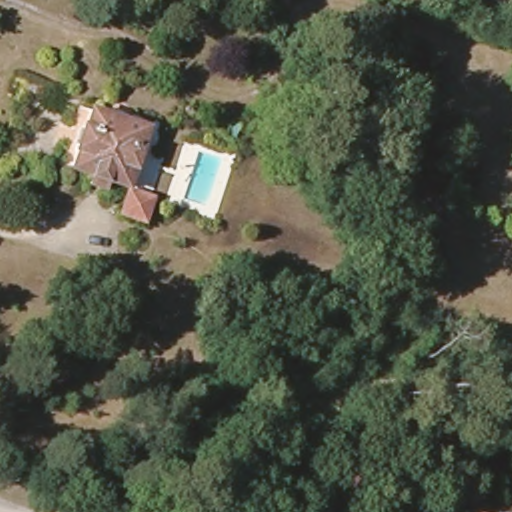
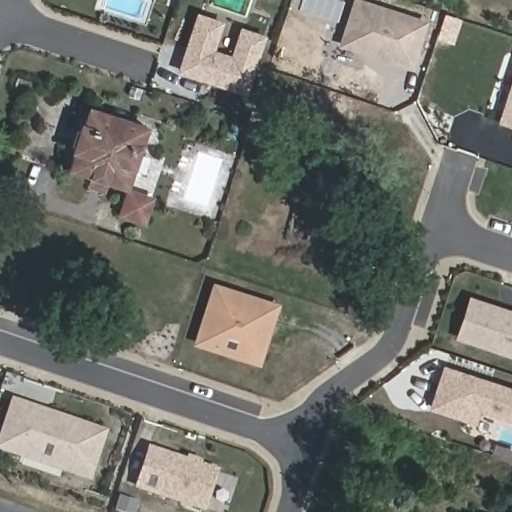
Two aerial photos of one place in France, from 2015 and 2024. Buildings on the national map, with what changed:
new [(360,0),(362,0),(429,21),(415,65),(346,43),(360,0)]
new [(263,43),(246,94),(177,71),(195,16),(222,25),(214,50),(230,54),(244,33),(252,35),(263,43)]
new [(512,84),(512,125),(499,121),(512,84)]
unchanged [(128,187),(72,168),(91,109),(147,128),(128,187)]
unchanged [(145,221),(122,214),(129,191),(152,198),(145,221)]
new [(246,357),(200,342),(219,285),(280,304),(267,344),(262,361),(246,357)]
new [(512,310),(512,351),(462,335),(475,298),(512,310)]
new [(512,388),(512,416),(484,407),(480,421),(437,406),(450,367),(512,388)]
new [(0,446),(15,399),(42,408),(44,404),(50,406),(49,411),(107,430),(92,476),(65,468),(27,455),(0,446)]
new [(154,448),(219,469),(207,507),(141,485),(154,448)]

